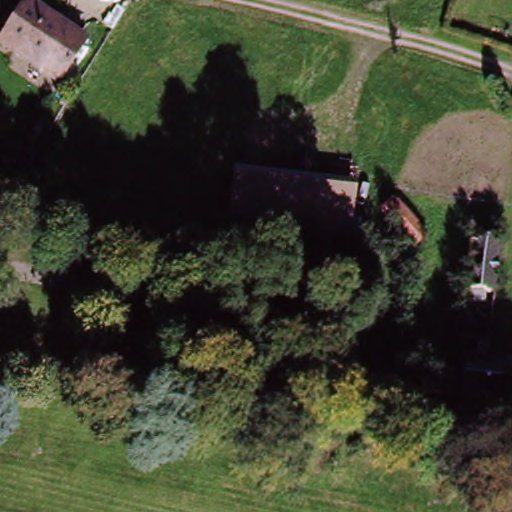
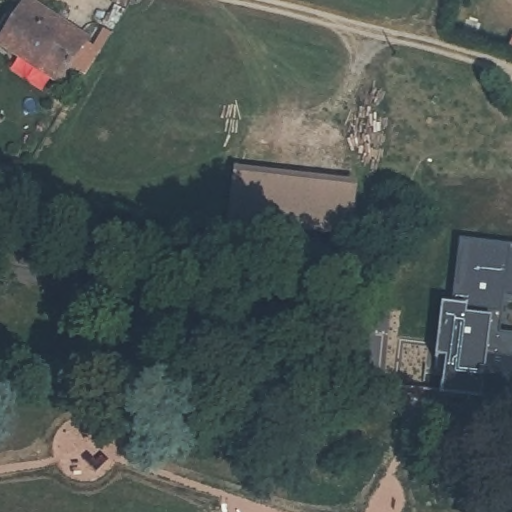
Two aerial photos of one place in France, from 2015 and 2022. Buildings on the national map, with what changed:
unchanged [(60,84),(0,50),(0,43),(22,5),(85,40),(60,84)]
unchanged [(346,237),(224,223),(229,179),(351,194),(346,237)]
unchanged [(390,227),(401,217),(432,255),(421,265),(390,227)]
demolished [(512,359),(512,397),(457,390),(462,332),(451,330),(455,277),(465,276),(467,235),(500,238),(490,356),(512,359)]
new [(438,365),(427,365),(432,331),(437,331),(439,306),(450,306),(458,242),(512,249),(512,299),(502,298),(498,334),(512,335),(512,408),(435,400),(438,365)]

